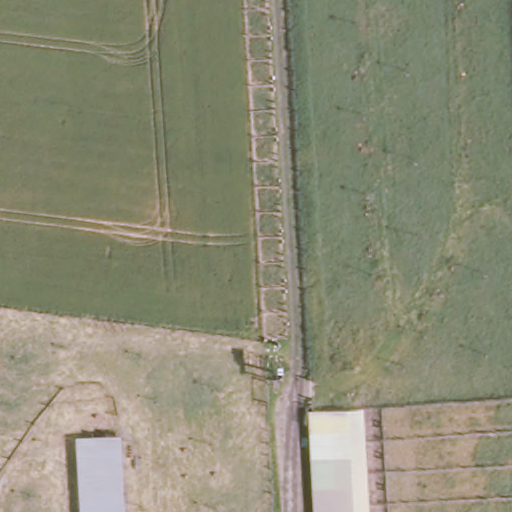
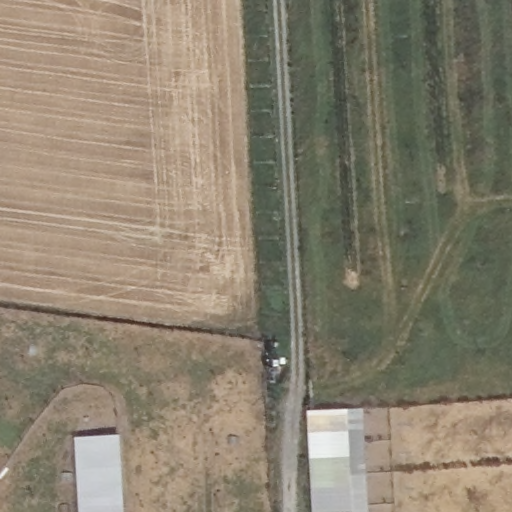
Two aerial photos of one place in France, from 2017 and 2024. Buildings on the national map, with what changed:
unchanged [(363,402),(369,512),(311,512),(305,406),(363,402)]
unchanged [(119,431),(123,512),(77,512),(72,432),(119,431)]

